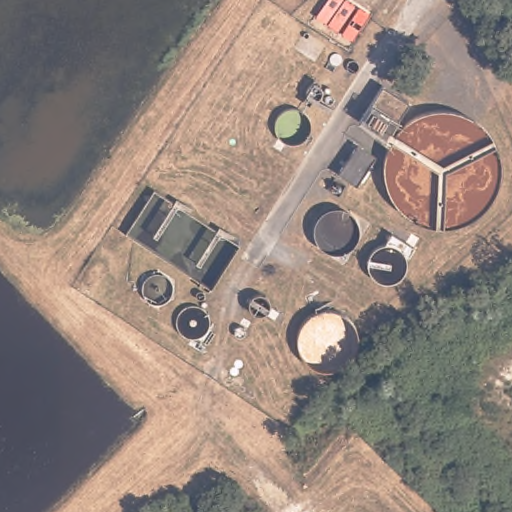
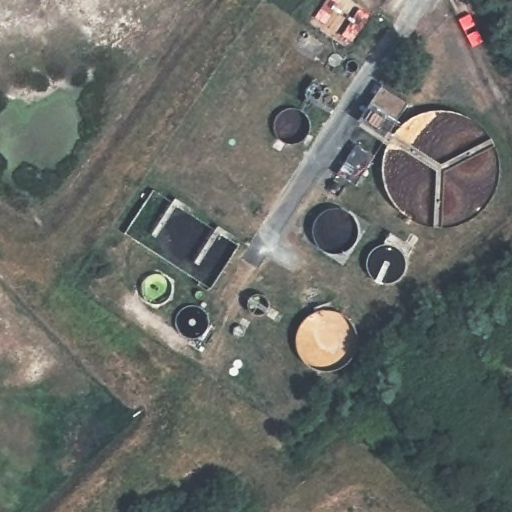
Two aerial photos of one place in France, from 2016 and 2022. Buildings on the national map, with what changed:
unchanged [(408,100),(386,139),(360,122),(382,84),(408,100)]
unchanged [(376,152),(355,185),(336,174),(360,141),(376,152)]

